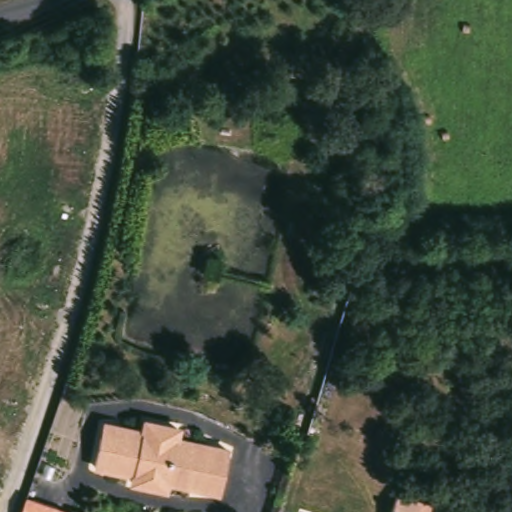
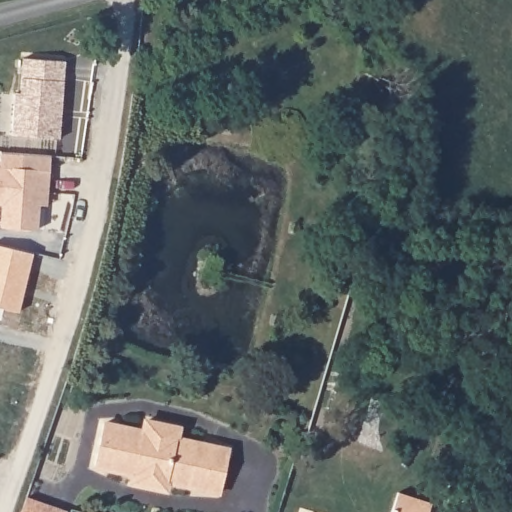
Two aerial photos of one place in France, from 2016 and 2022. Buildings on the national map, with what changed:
new [(13,92),(18,93),(21,58),(63,61),(58,138),(10,135),(13,92)]
new [(38,204),(36,229),(0,227),(0,152),(49,155),(46,193),(45,205),(38,204)]
unchanged [(137,431),(139,422),(140,421),(147,423),(172,429),(170,439),(176,441),(222,453),(211,494),(159,481),(159,482),(157,489),(156,489),(124,481),(126,473),(87,464),(98,421),(137,431)]
unchanged [(428,500),(425,512),(388,512),(395,489),(428,500)]
unchanged [(40,512),(19,512),(21,504),(40,512)]

